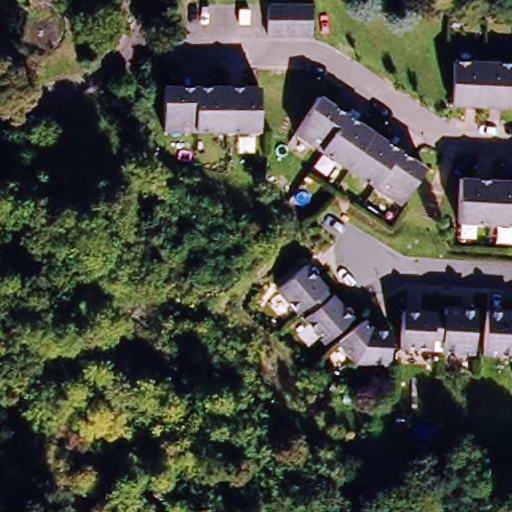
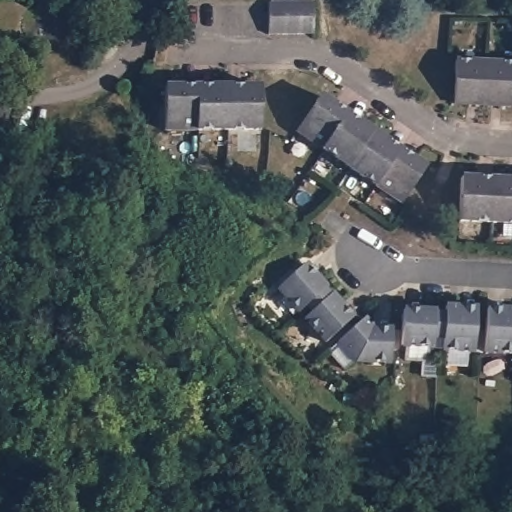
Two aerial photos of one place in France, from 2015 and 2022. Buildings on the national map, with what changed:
unchanged [(283,6),(298,6),(316,4),(316,36),(298,37),(282,38),(270,38),(271,6),(283,6)]
unchanged [(452,107),(453,62),(482,64),(481,108),(452,107)]
unchanged [(511,66),(510,109),(481,108),(482,64),(511,66)]
unchanged [(512,109),(510,109),(511,66),(512,66),(512,109)]
unchanged [(161,133),(163,88),(194,87),(192,134),(161,133)]
unchanged [(227,87),(227,134),(192,134),(194,87),(227,87)]
unchanged [(260,87),(260,134),(227,134),(227,87),(260,87)]
unchanged [(295,133),(322,95),(346,113),(321,152),(295,133)]
unchanged [(346,113),(372,132),(346,170),(321,152),(346,113)]
unchanged [(398,151),(373,189),(346,170),(372,132),(398,151)]
unchanged [(425,171),(400,209),(373,189),(398,151),(425,171)]
unchanged [(458,219),(460,174),(490,175),(486,220),(458,219)]
unchanged [(512,221),(486,220),(490,175),(512,176),(512,221)]
unchanged [(393,363),(352,363),(328,338),(321,343),(275,290),(301,267),(342,316),(350,311),(365,328),(392,328),(395,308),(512,313),(512,351),(395,346),(393,363)]

